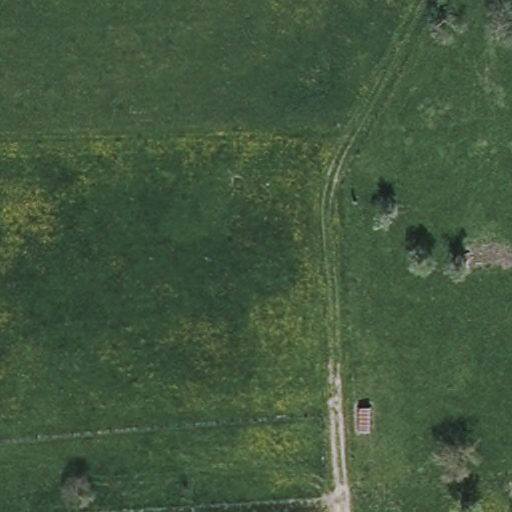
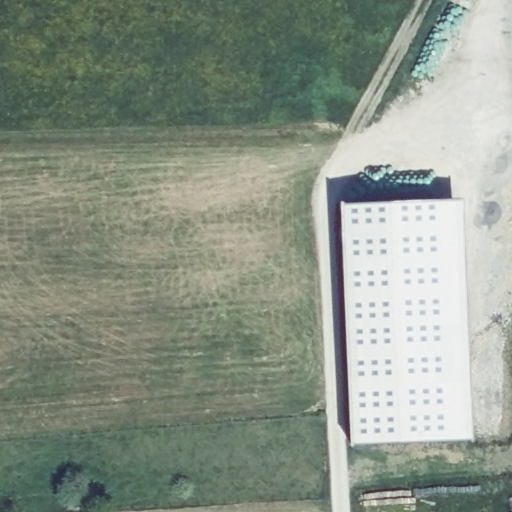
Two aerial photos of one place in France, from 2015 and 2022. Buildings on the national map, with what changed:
new [(460,200),(471,438),(351,445),(338,206),(460,200)]

